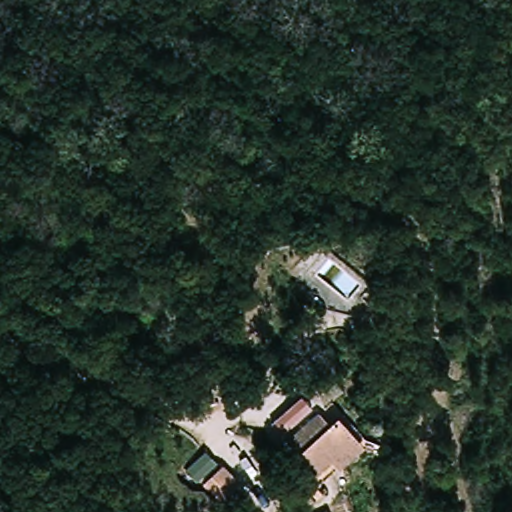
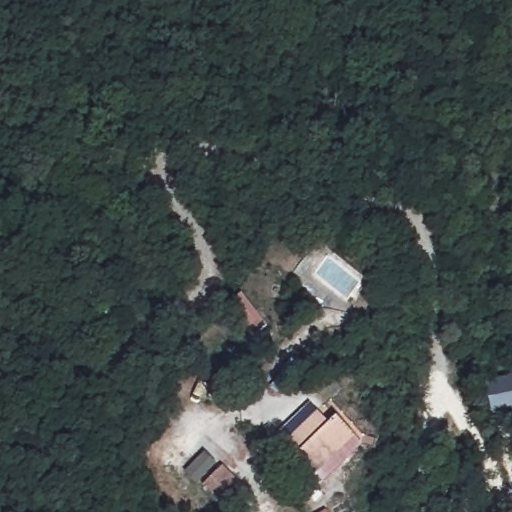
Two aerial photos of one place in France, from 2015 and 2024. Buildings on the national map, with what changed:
new [(512,376),(512,411),(493,415),(486,383),(512,376)]
unchanged [(325,481),(316,470),(289,438),(322,410),(330,419),(338,413),(357,436),(366,446),(325,481)]
unchanged [(224,461),(247,481),(228,505),(206,486),(224,461)]

